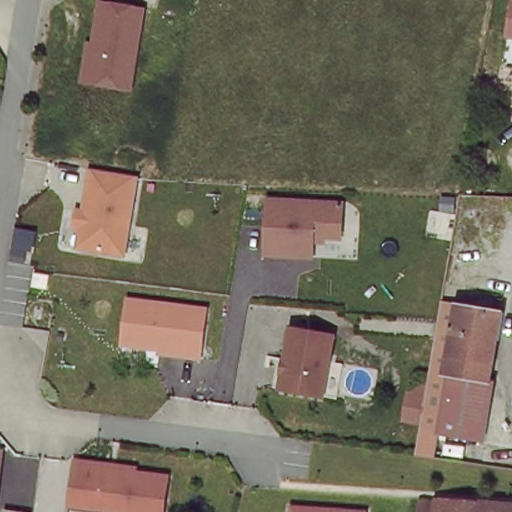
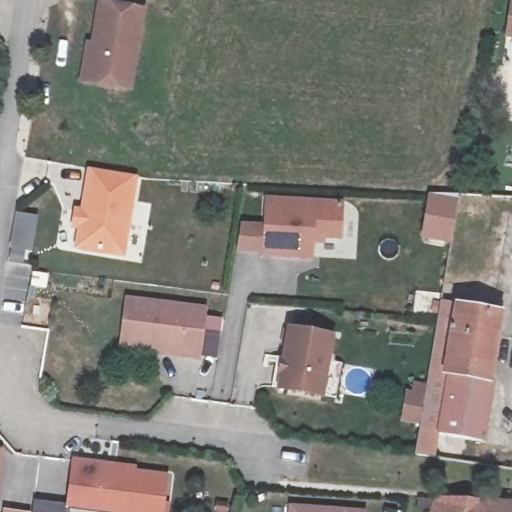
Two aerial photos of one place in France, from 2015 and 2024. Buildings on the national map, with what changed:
unchanged [(88,45),(93,46),(101,4),(142,11),(127,91),(86,83),(81,82),(88,45)]
unchanged [(512,21),(512,35),(510,35),(512,21)]
unchanged [(136,179),(122,258),(76,250),(80,230),(84,227),(86,219),(83,214),(90,171),(136,179)]
new [(458,197),(450,244),(420,238),(428,192),(458,197)]
unchanged [(345,207),(343,241),(316,239),(315,260),(267,258),(271,203),(345,207)]
unchanged [(208,308),(202,357),(185,355),(185,351),(125,343),(131,298),(208,308)]
unchanged [(455,303),(499,309),(489,379),(494,379),(485,441),(440,434),(450,373),(445,373),(455,303)]
unchanged [(330,339),(319,399),(277,392),(288,332),(330,339)]
unchanged [(450,373),(440,434),(437,459),(415,457),(427,370),(445,373),(450,373)]
unchanged [(2,456),(0,467),(0,456),(2,456)]
unchanged [(107,466),(107,469),(168,478),(163,512),(81,512),(70,511),(76,461),(107,466)]
unchanged [(425,499),(509,499),(507,512),(424,512),(425,499)]
unchanged [(290,506),(367,511),(366,512),(289,512),(290,506)]

